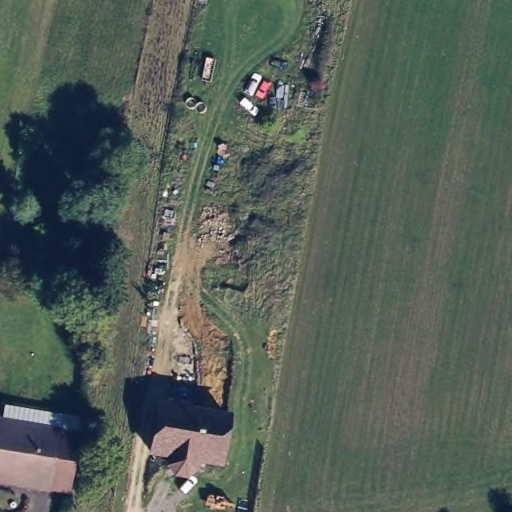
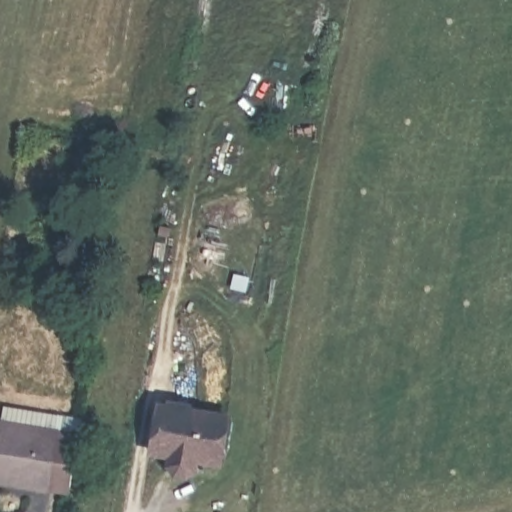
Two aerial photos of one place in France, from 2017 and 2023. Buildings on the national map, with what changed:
unchanged [(185,465),(179,462),(174,458),(173,445),(159,442),(165,400),(195,404),(185,465)]
unchanged [(223,453),(198,450),(196,457),(193,462),(185,465),(195,404),(229,409),(223,453)]
unchanged [(42,491),(42,493),(0,485),(0,408),(53,418),(51,435),(74,438),(68,476),(65,496),(42,491)]

